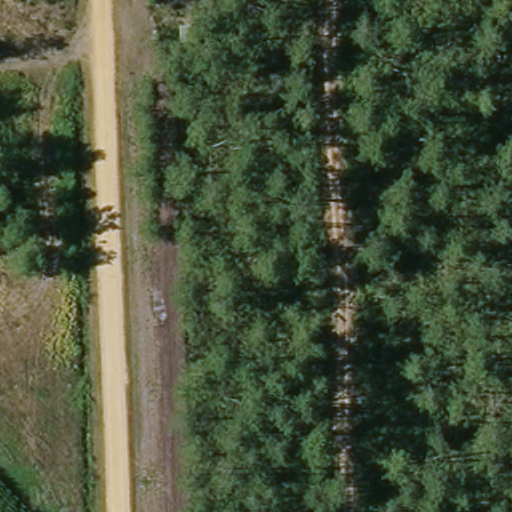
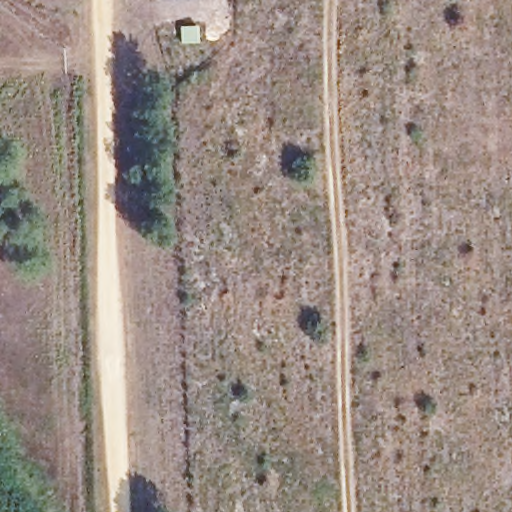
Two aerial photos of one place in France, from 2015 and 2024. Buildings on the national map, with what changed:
[]

